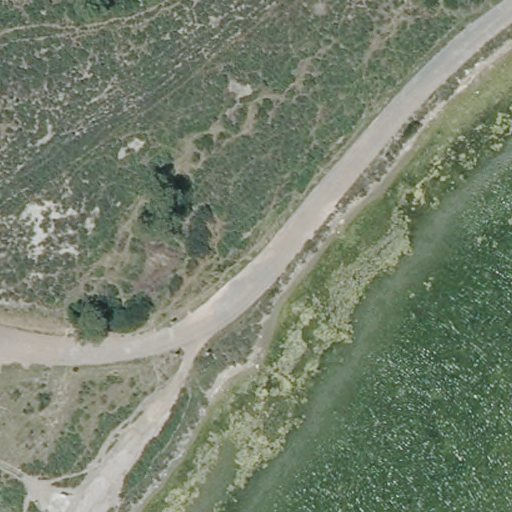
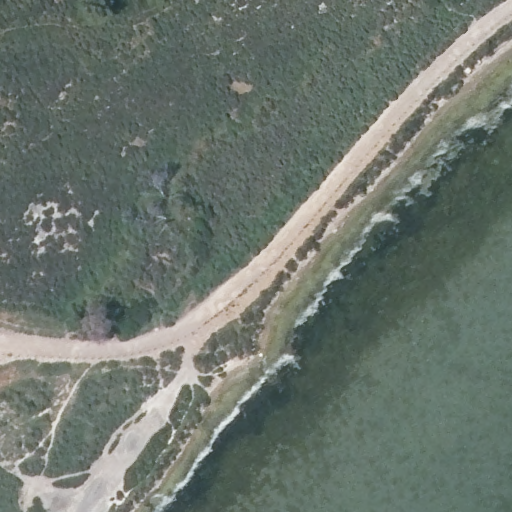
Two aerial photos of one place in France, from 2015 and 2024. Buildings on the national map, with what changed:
[]

